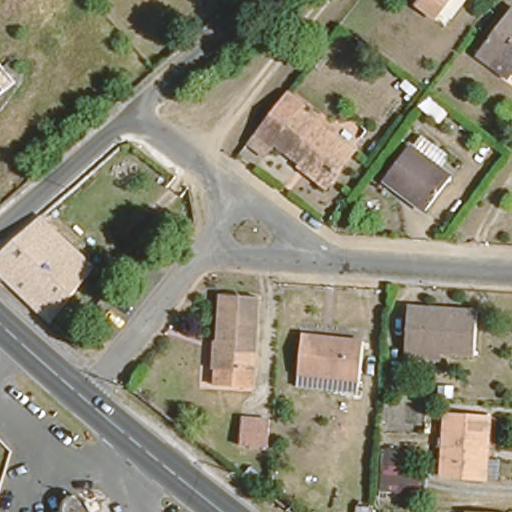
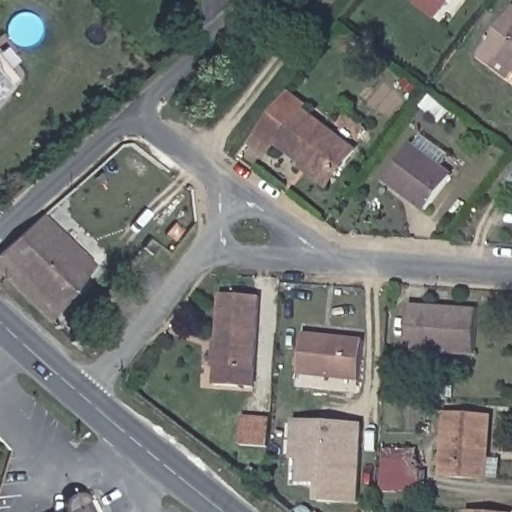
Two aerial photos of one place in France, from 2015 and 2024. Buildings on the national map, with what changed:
unchanged [(427,0),(443,0),(437,7),(427,0)]
unchanged [(503,60),(496,68),(478,55),(512,9),(512,66),(503,60)]
unchanged [(0,107),(0,76),(16,95),(0,107)]
unchanged [(298,163),(303,156),(277,137),(267,149),(250,135),(254,130),(286,90),(300,101),(296,105),(352,147),(330,176),(325,182),(298,163)]
unchanged [(406,146),(448,177),(421,211),(379,179),(406,146)]
unchanged [(0,252),(41,216),(44,214),(49,209),(101,260),(94,268),(54,321),(0,269),(0,252)]
unchanged [(146,240),(155,246),(148,255),(139,249),(146,240)]
unchanged [(256,295),(252,386),(213,384),(217,293),(256,295)]
unchanged [(402,358),(403,348),(405,305),(474,308),(471,353),(436,350),(436,360),(402,358)]
unchanged [(294,385),(296,372),(300,333),(361,340),(357,378),(356,391),(294,385)]
unchanged [(488,415),(484,476),(439,474),(444,412),(488,415)]
unchanged [(270,418),(269,446),(240,445),(241,417),(270,418)]
new [(318,502),(318,484),(303,483),(307,422),(361,425),(356,504),(318,502)]
unchanged [(66,511),(66,510),(67,508),(68,506),(69,505),(71,503),(72,501),(74,500),(75,500),(77,499),(79,498),(81,498),(83,498),(85,499),(86,500),(89,500),(90,501),(91,502),(93,503),(94,505),(95,507),(96,508),(98,512),(66,512),(66,511)]
unchanged [(488,512),(466,512),(466,510),(488,512)]

